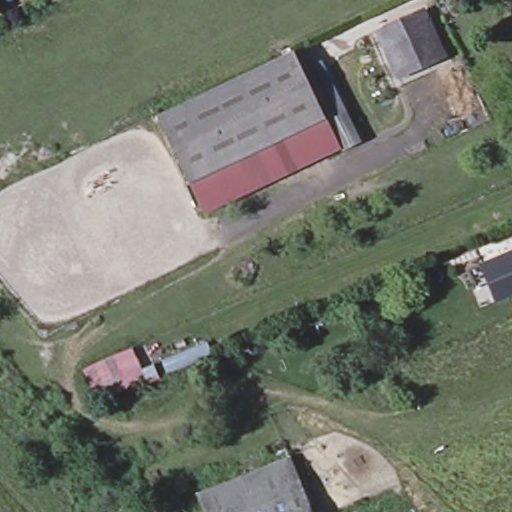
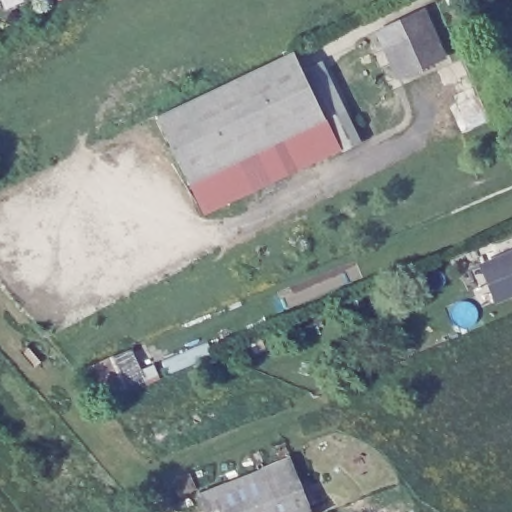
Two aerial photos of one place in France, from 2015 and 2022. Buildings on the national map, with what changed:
unchanged [(414,12),(420,23),(435,56),(396,73),(381,41),(375,29),(414,12)]
unchanged [(168,147),(155,118),(291,54),(305,84),(323,122),(187,186),(168,147)]
unchanged [(323,122),(337,152),(200,216),(187,186),(323,122)]
unchanged [(497,279),(489,261),(512,251),(512,293),(504,296),(497,279)]
unchanged [(138,370),(154,364),(160,379),(145,386),(141,379),(120,388),(122,393),(105,400),(102,393),(93,397),(80,370),(129,346),(138,370)]
unchanged [(281,454),(294,487),(303,512),(198,512),(190,491),(281,454)]

